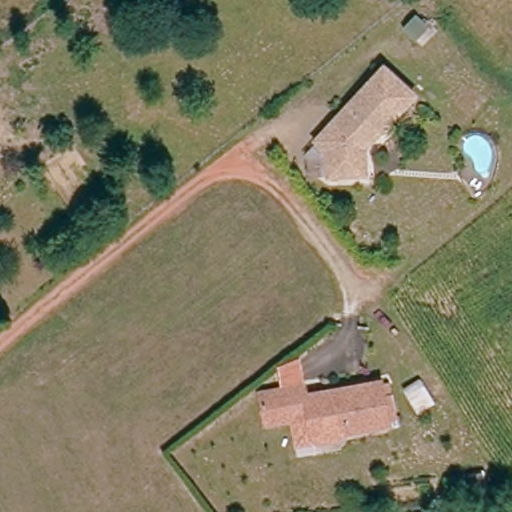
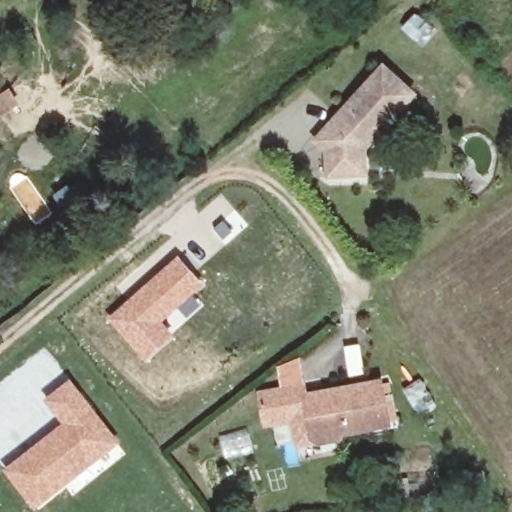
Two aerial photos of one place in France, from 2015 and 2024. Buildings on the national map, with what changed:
unchanged [(419,5),(429,15),(413,32),(403,22),(419,5)]
unchanged [(419,98),(392,128),(381,134),(364,152),(365,178),(333,180),(332,154),(322,145),(337,127),(352,110),(389,70),(419,98)]
new [(177,253),(204,284),(194,293),(204,305),(145,361),(105,318),(177,253)]
new [(61,422),(42,397),(70,376),(122,443),(69,485),(33,510),(2,469),(61,422)]
unchanged [(342,434),(338,441),(321,445),(313,441),(308,419),(266,429),(260,400),(302,390),(305,399),(380,383),(380,385),(387,383),(396,421),(388,422),(388,424),(342,434)]

